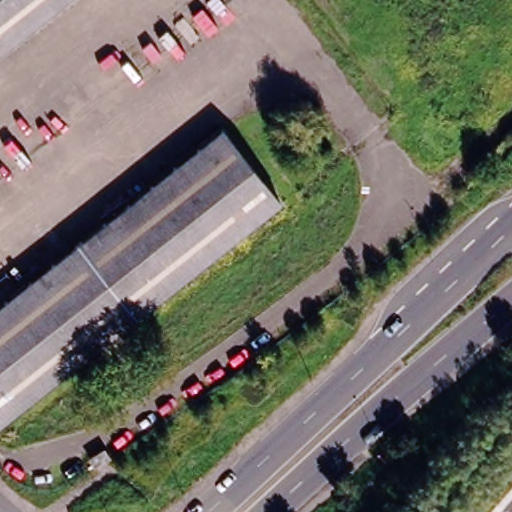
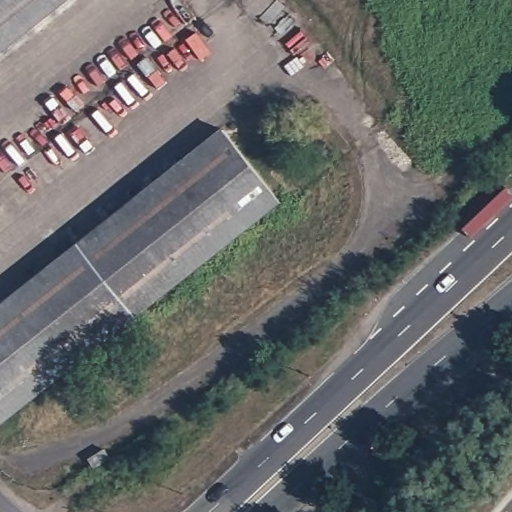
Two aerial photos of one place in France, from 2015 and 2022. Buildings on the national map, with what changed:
unchanged [(0,46),(0,0),(57,0),(0,46)]
unchanged [(277,200),(0,422),(0,302),(220,127),(277,200)]
unchanged [(102,448),(107,456),(91,465),(86,458),(102,448)]

